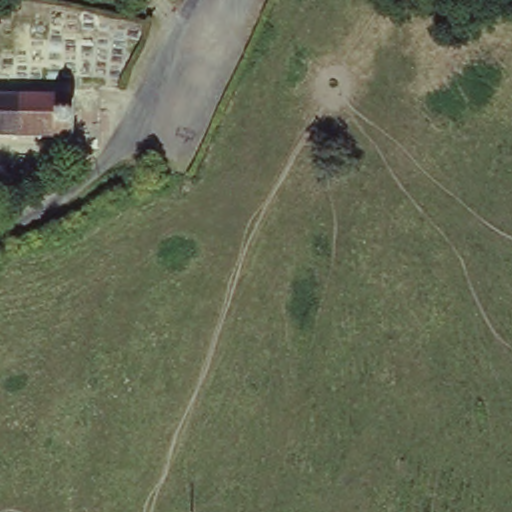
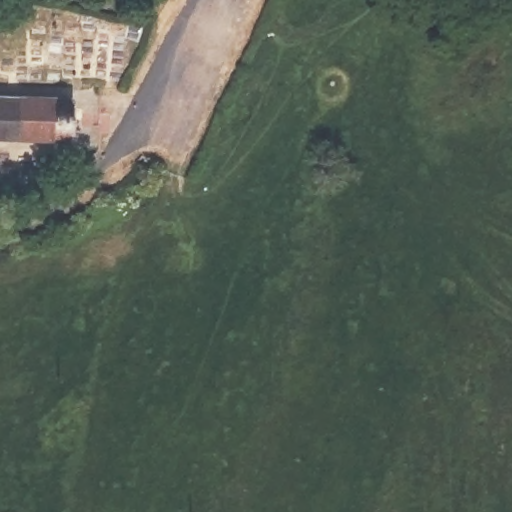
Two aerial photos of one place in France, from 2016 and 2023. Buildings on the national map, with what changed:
unchanged [(67,141),(0,143),(0,97),(70,96),(67,141)]

